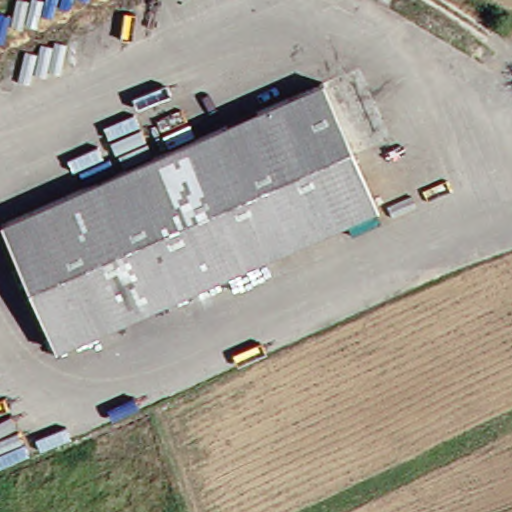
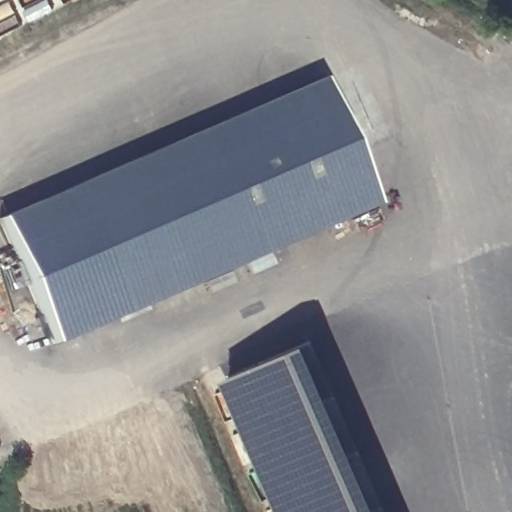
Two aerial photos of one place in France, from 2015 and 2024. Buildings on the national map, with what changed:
unchanged [(380,207),(55,343),(1,222),(330,82),(380,207)]
new [(288,512),(228,377),(312,339),(386,512),(288,512)]

